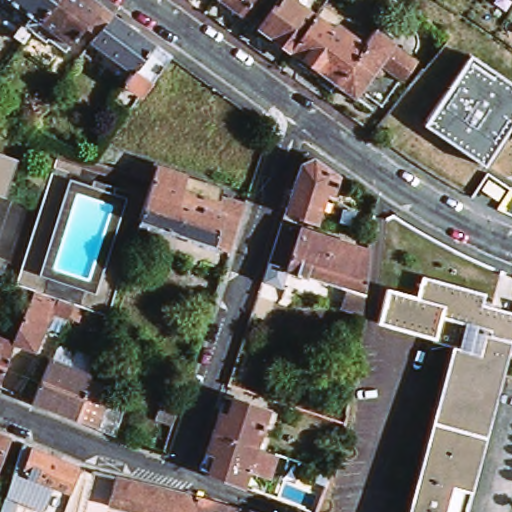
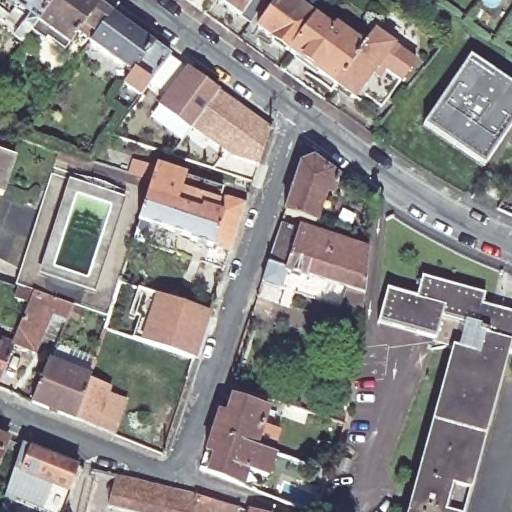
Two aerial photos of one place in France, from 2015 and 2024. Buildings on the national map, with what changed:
unchanged [(43,20),(37,28),(1,2),(3,0),(57,0),(43,20)]
unchanged [(118,11),(95,41),(93,39),(94,37),(84,30),(75,42),(43,20),(57,0),(103,0),(118,11)]
unchanged [(211,2),(208,0),(213,0),(211,2)]
unchanged [(213,0),(266,0),(246,28),(211,2),(213,0)]
unchanged [(251,32),(274,0),(279,0),(310,21),(285,56),(251,32)]
unchanged [(158,40),(136,69),(95,41),(118,11),(158,40)]
unchanged [(310,21),(327,34),(331,28),(362,50),(333,90),(285,56),(310,21)]
unchanged [(390,47),(389,49),(411,65),(398,85),(384,75),(378,83),(372,79),(353,105),(333,90),(362,50),(372,35),(390,47)]
unchanged [(176,52),(146,94),(135,85),(143,74),(136,69),(158,40),(176,52)]
unchanged [(512,82),(512,124),(486,165),(426,124),(472,54),(512,82)]
new [(187,70),(205,82),(205,85),(217,94),(218,92),(219,93),(194,127),(191,131),(159,107),(187,70)]
new [(219,93),(270,131),(258,164),(232,156),(194,127),(219,93)]
unchanged [(15,160),(3,197),(0,196),(0,154),(15,160)]
unchanged [(52,317),(35,357),(14,349),(30,311),(16,306),(21,292),(16,291),(55,165),(148,196),(134,245),(110,323),(72,311),(67,323),(52,317)]
unchanged [(285,220),(302,171),(313,165),(338,183),(332,200),(326,197),(315,230),(285,220)]
unchanged [(228,258),(215,254),(214,257),(194,251),(195,247),(148,232),(142,248),(134,245),(148,196),(150,189),(140,185),(146,170),(223,195),(220,202),(227,205),(227,202),(245,209),(228,258)]
unchanged [(362,321),(262,288),(281,231),(367,258),(362,321)]
unchanged [(431,349),(433,343),(377,327),(387,295),(418,303),(424,283),(485,301),(483,310),(512,318),(512,359),(509,358),(468,497),(464,512),(407,512),(452,355),(431,349)]
new [(138,288),(212,312),(197,360),(138,338),(139,335),(136,333),(142,319),(128,314),(138,288)]
unchanged [(14,350),(0,383),(0,345),(14,350)]
unchanged [(65,421),(20,402),(39,359),(83,377),(81,380),(65,421)]
unchanged [(121,395),(105,436),(65,421),(81,380),(121,395)]
unchanged [(172,423),(152,416),(160,395),(179,402),(172,423)]
unchanged [(226,416),(232,400),(268,412),(256,448),(212,433),(219,413),(226,416)]
unchanged [(268,478),(248,472),(243,487),(208,472),(214,456),(206,453),(212,433),(256,448),(276,455),(268,478)]
unchanged [(7,445),(0,463),(0,442),(7,445)]
unchanged [(16,497),(5,492),(13,468),(22,470),(29,449),(77,468),(72,491),(70,491),(63,512),(53,512),(15,500),(16,497)]
unchanged [(325,486),(312,482),(317,468),(330,472),(325,486)]
unchanged [(129,512),(109,507),(115,477),(194,496),(190,512),(129,512)]
unchanged [(236,512),(190,512),(194,496),(237,508),(236,512)]

